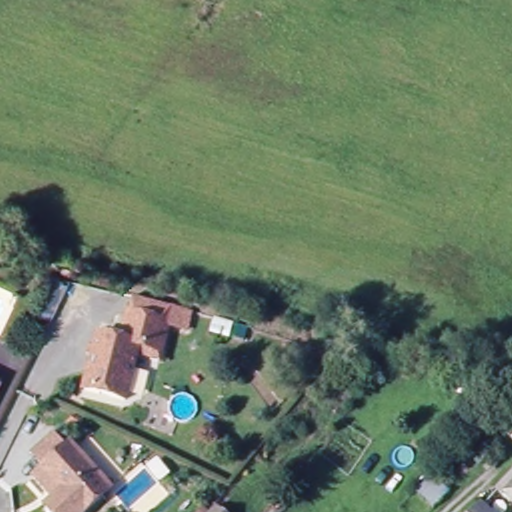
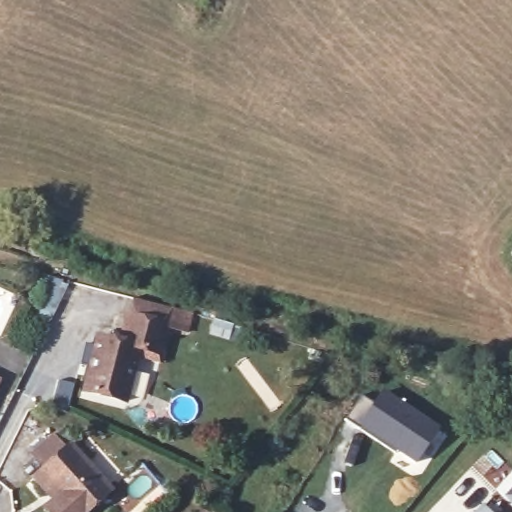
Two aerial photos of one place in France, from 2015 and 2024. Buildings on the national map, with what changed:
unchanged [(140,352),(128,402),(89,393),(100,339),(122,345),(128,320),(133,301),(160,308),(169,311),(170,311),(177,313),(199,319),(195,340),(164,334),(159,357),(140,352)]
new [(361,395),(371,401),(381,387),(443,427),(441,429),(447,433),(432,456),(426,452),(416,464),(376,440),(345,419),(361,395)]
unchanged [(55,473),(59,470),(46,454),(62,439),(76,454),(83,448),(121,492),(99,512),(61,512),(59,509),(65,502),(47,480),(55,473)]
unchanged [(512,474),(512,507),(495,494),(512,474)]
unchanged [(215,507),(221,512),(211,512),(215,507)]
unchanged [(481,511),(481,512),(480,512),(481,511)]

